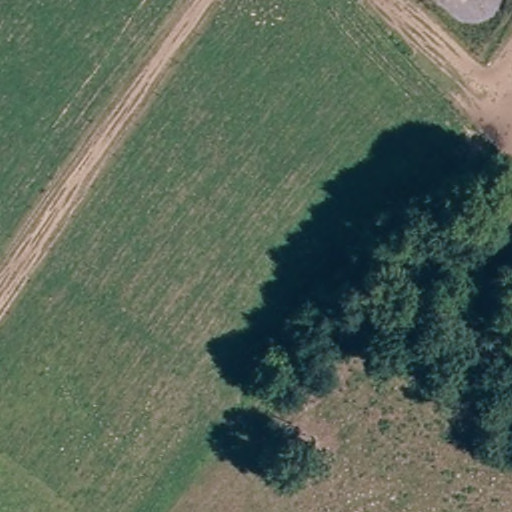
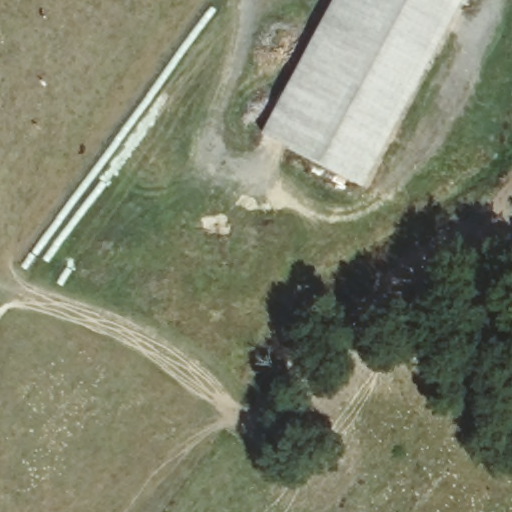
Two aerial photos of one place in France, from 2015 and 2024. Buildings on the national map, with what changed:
new [(466,7),(461,4),(363,190),(261,136),(336,0),(469,0),(466,7)]

